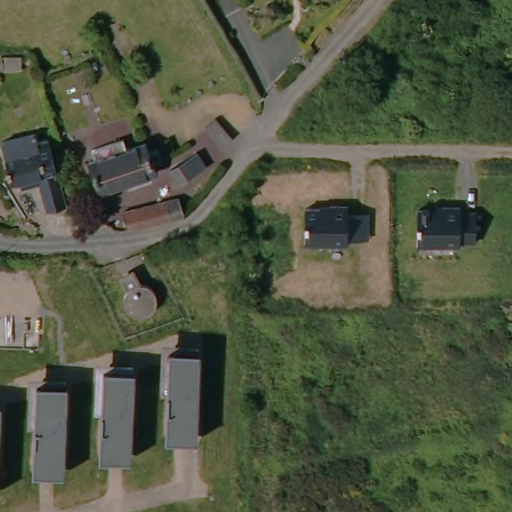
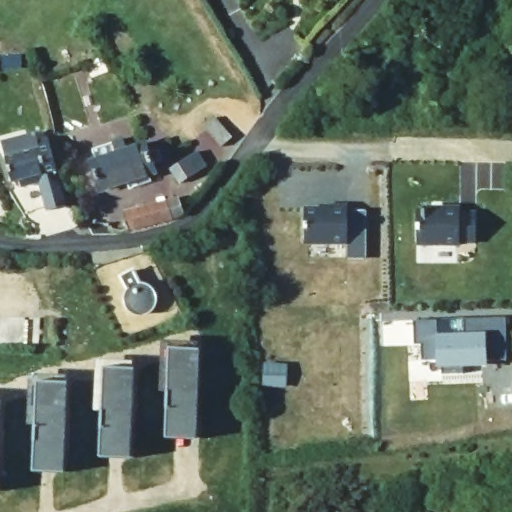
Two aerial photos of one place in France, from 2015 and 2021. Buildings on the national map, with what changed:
unchanged [(18,58),(18,70),(0,67),(1,55),(18,58)]
unchanged [(229,137),(217,146),(206,130),(218,121),(229,137)]
unchanged [(0,173),(0,141),(29,136),(31,145),(41,142),(53,213),(33,216),(28,187),(10,190),(8,181),(1,182),(0,173)]
unchanged [(142,144),(153,174),(98,196),(87,166),(103,159),(99,149),(121,141),(124,151),(142,144)]
unchanged [(198,154),(206,167),(180,186),(171,172),(198,154)]
unchanged [(180,202),(184,216),(127,229),(124,214),(180,202)]
unchanged [(366,237),(346,237),(346,241),(305,240),(307,205),(331,206),(331,203),(349,204),(348,210),(368,211),(366,237)]
unchanged [(446,207),(446,205),(464,205),(464,210),(479,210),(478,240),(462,240),(461,242),(420,242),(422,207),(446,207)]
new [(467,364),(468,381),(448,382),(446,357),(424,358),(423,343),(416,343),(414,319),(439,317),(439,332),(466,331),(465,316),(508,313),(511,357),(490,357),(491,362),(467,364)]
unchanged [(207,350),(201,437),(171,436),(177,348),(207,350)]
unchanged [(135,367),(129,455),(99,452),(106,365),(135,367)]
unchanged [(73,384),(66,471),(37,469),(43,382),(73,384)]
unchanged [(0,467),(0,406),(4,406),(0,467)]

